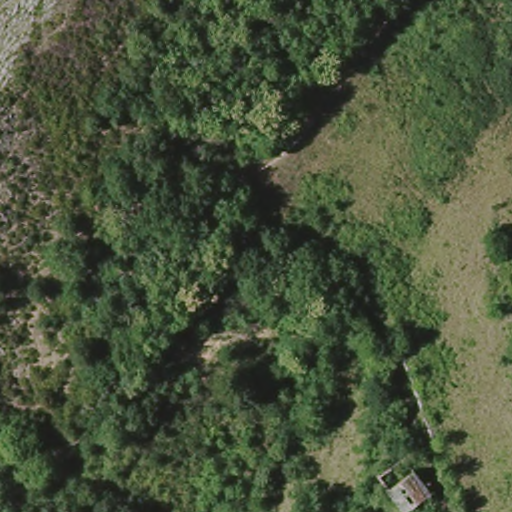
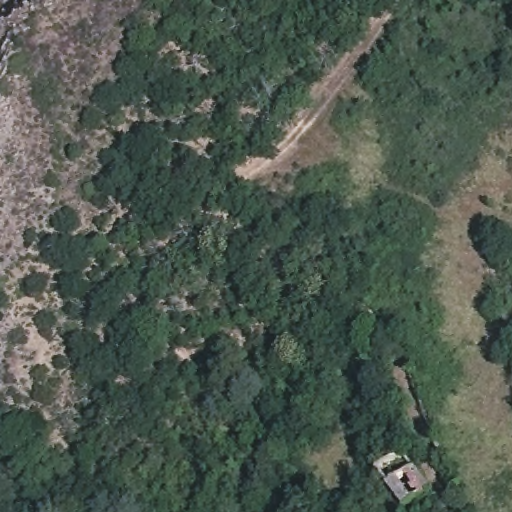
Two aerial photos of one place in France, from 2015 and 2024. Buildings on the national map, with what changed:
unchanged [(438,498),(426,503),(412,510),(397,487),(425,474),(438,498)]

